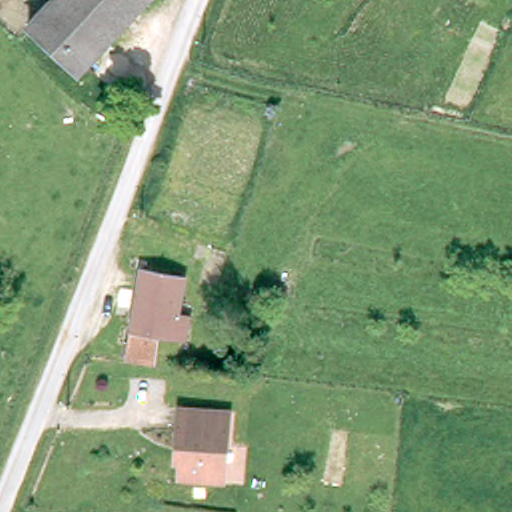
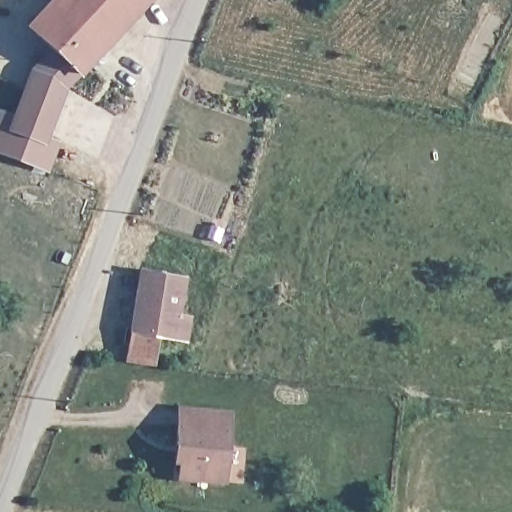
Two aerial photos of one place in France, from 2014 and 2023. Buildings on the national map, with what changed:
unchanged [(84,76),(29,27),(53,0),(151,0),(84,76)]
new [(67,89),(49,137),(61,142),(48,172),(0,154),(0,111),(11,115),(30,69),(52,48),(84,76),(67,89)]
unchanged [(137,269),(171,275),(165,315),(183,318),(180,340),(154,336),(151,364),(123,360),(137,269)]
unchanged [(229,413),(223,482),(179,478),(181,445),(176,445),(179,409),(229,413)]

